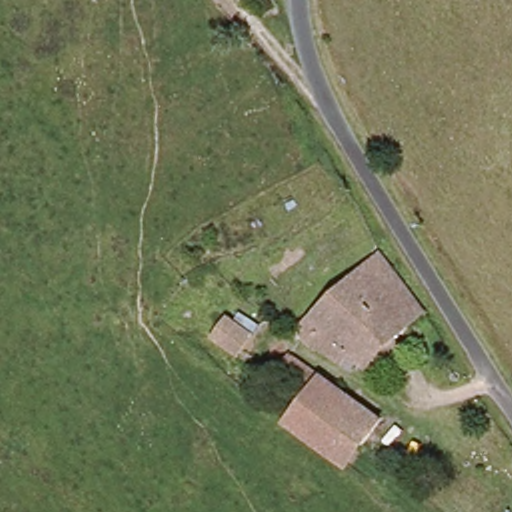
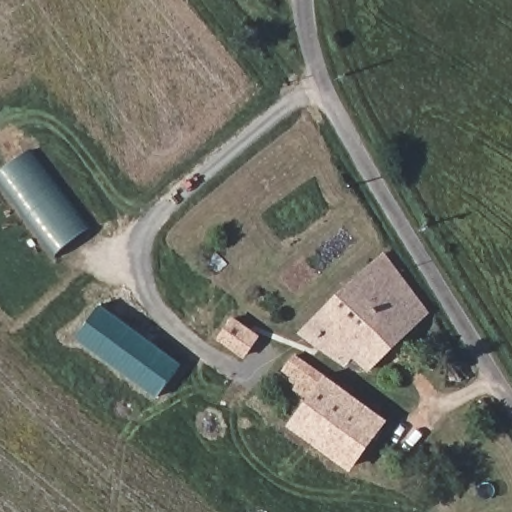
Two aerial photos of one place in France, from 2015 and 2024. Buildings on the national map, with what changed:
new [(91,228),(54,256),(0,188),(0,173),(26,154),(91,228)]
unchanged [(347,350),(338,357),(305,320),(385,253),(429,310),(362,369),(347,350)]
new [(100,304),(182,364),(158,396),(77,337),(100,304)]
unchanged [(222,336),(238,318),(263,338),(246,357),(222,336)]
unchanged [(279,377),(300,353),(388,423),(369,447),(312,402),(279,377)]
unchanged [(369,447),(350,470),(291,427),(312,402),(369,447)]

